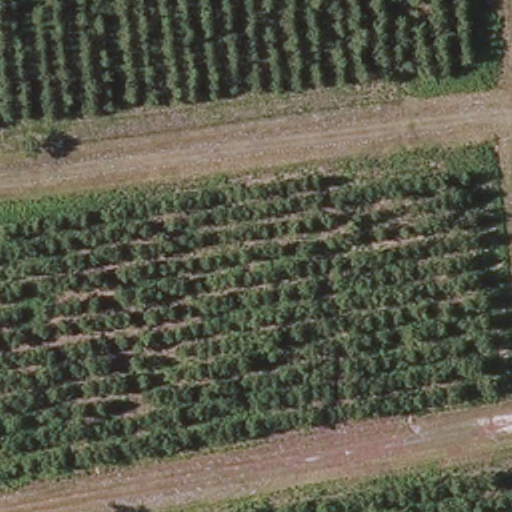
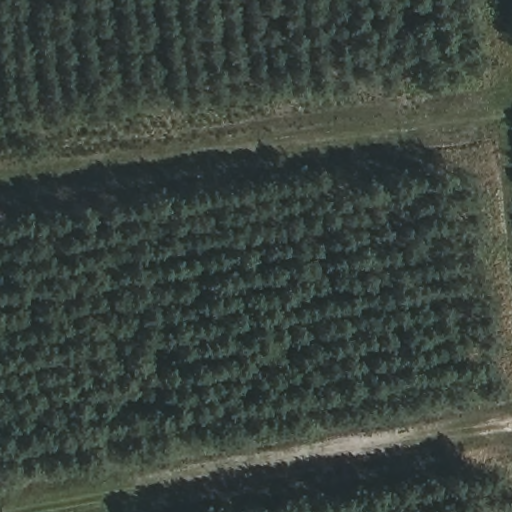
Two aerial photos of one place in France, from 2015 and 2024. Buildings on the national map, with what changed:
[]

